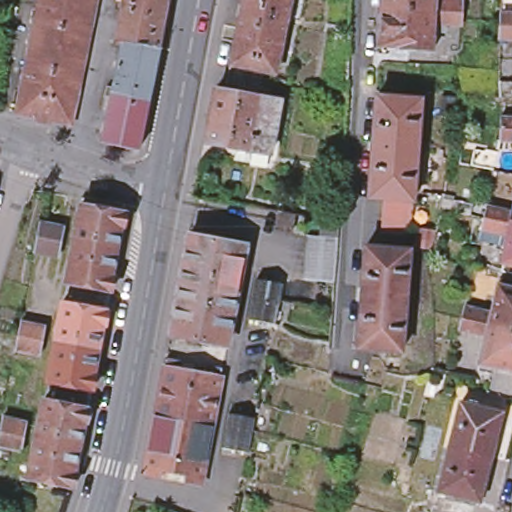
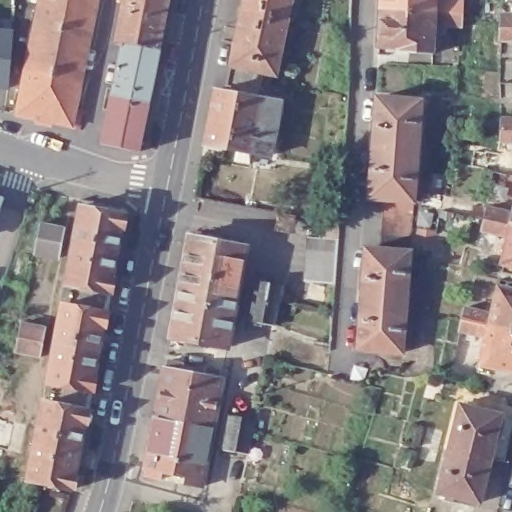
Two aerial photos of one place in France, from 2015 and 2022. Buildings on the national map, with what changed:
unchanged [(37,0),(93,0),(69,121),(15,110),(37,0)]
unchanged [(156,48),(120,42),(112,41),(120,0),(165,0),(156,47),(156,48)]
unchanged [(231,39),(235,24),(236,14),(239,2),(239,0),(286,0),(271,71),(259,68),(255,87),(223,81),(227,62),(231,39)]
unchanged [(455,22),(429,21),(427,51),(395,49),(395,45),(373,44),(375,5),(376,0),(458,0),(458,10),(457,15),(457,22),(455,22)]
unchanged [(496,37),(497,24),(497,20),(497,12),(512,12),(512,37),(496,37)]
new [(10,90),(0,89),(0,26),(15,27),(10,90)]
unchanged [(98,139),(120,42),(156,48),(136,147),(98,139)]
unchanged [(231,158),(233,148),(201,142),(211,87),(220,88),(276,98),(266,154),(246,151),(245,160),(231,158)]
unchanged [(361,245),(375,246),(376,229),(378,212),(380,196),(365,195),(373,95),(417,97),(410,197),(410,198),(408,214),(407,231),(406,248),(398,348),(354,346),(361,245)]
unchanged [(497,127),(497,124),(497,115),(512,115),(512,140),(497,140),(497,127)]
unchanged [(77,202),(123,210),(120,224),(118,224),(108,273),(110,274),(108,288),(62,280),(77,202)]
unchanged [(481,228),(477,229),(481,215),(483,204),(510,210),(512,202),(512,264),(498,261),(505,235),(481,228)]
unchanged [(293,236),(277,232),(280,215),(296,218),(293,236)]
unchanged [(56,252),(44,250),(31,247),(37,218),(50,221),(61,223),(56,252)]
unchanged [(175,283),(186,232),(213,237),(204,288),(175,283)]
unchanged [(213,237),(241,243),(232,293),(204,288),(213,237)]
unchanged [(341,241),(340,256),(339,270),(338,285),(305,282),(307,267),(308,254),(309,239),(341,241)]
unchanged [(280,303),(275,327),(258,324),(251,322),(254,306),(255,298),(258,282),(266,283),(283,287),(280,303)]
unchanged [(204,288),(195,339),(166,334),(175,283),(204,288)]
unchanged [(475,362),(482,335),(456,329),(458,317),(462,303),(488,310),(494,284),(512,288),(512,369),(475,362)]
unchanged [(222,344),(195,339),(204,288),(232,293),(222,344)]
unchanged [(58,300),(104,308),(101,322),(99,322),(90,371),(92,372),(89,387),(43,377),(58,300)]
unchanged [(37,352),(25,349),(12,347),(15,332),(18,317),(30,321),(42,323),(37,352)]
unchanged [(161,364),(161,357),(178,361),(190,362),(202,365),(217,368),(216,375),(207,425),(179,420),(151,415),(161,364)]
unchanged [(40,397),(85,407),(82,421),(80,420),(71,471),(73,471),(70,485),(25,475),(40,397)]
unchanged [(475,499),(435,488),(457,402),(497,412),(475,499)]
unchanged [(6,445),(0,444),(0,413),(12,416),(24,418),(18,447),(6,445)]
unchanged [(180,480),(168,478),(157,476),(140,473),(141,466),(151,415),(179,420),(207,425),(197,476),(196,483),(180,480)]
unchanged [(253,434),(252,438),(249,456),(237,453),(224,451),(227,433),(231,416),(243,418),(255,421),(253,434)]

